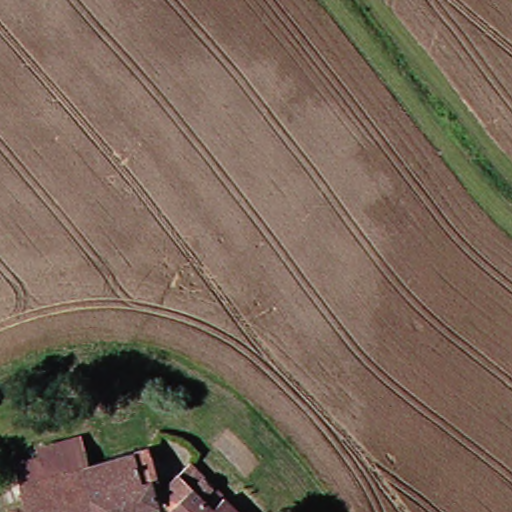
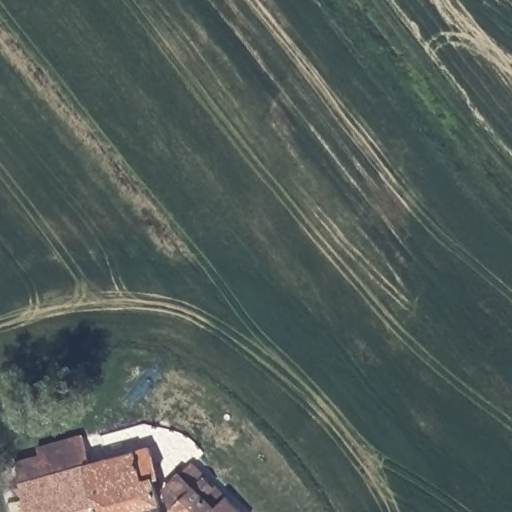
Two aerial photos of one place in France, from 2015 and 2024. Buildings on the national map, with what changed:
unchanged [(9,492),(5,478),(18,474),(16,464),(23,461),(21,455),(86,439),(96,467),(139,456),(155,451),(163,478),(155,481),(162,507),(147,512),(15,512),(9,492)]
unchanged [(176,510),(166,494),(196,466),(229,500),(241,512),(177,512),(176,510)]
unchanged [(281,510),(283,512),(279,512),(281,510)]

